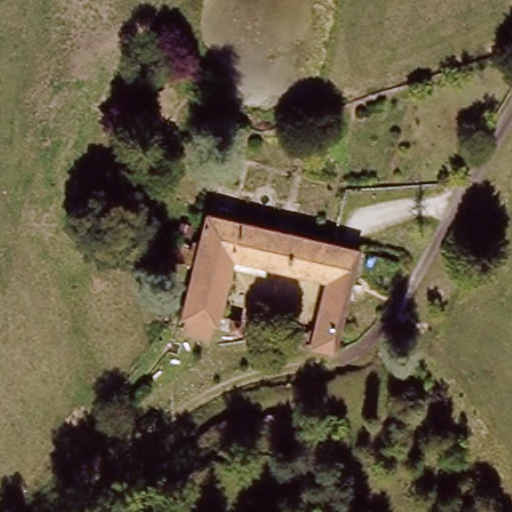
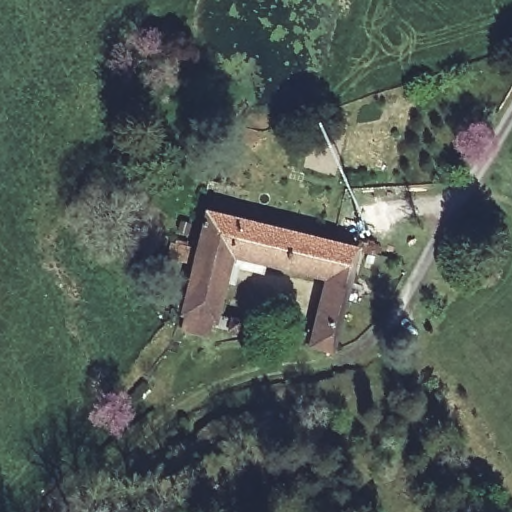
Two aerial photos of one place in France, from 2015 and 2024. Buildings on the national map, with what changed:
unchanged [(337,249),(356,254),(328,356),(306,350),(325,284),(233,257),(211,317),(175,307),(209,211),(337,249)]
unchanged [(257,347),(255,354),(253,358),(229,351),(231,342),(257,347)]

